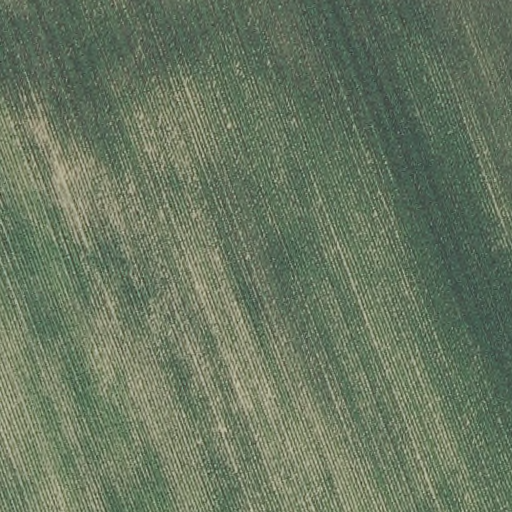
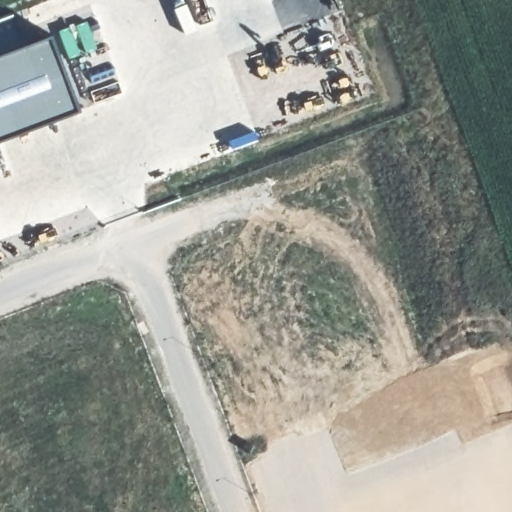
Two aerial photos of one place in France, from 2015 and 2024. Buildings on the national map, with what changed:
new [(12,12),(23,43),(51,34),(75,95),(79,94),(83,106),(38,125),(0,138),(0,17),(12,12)]

